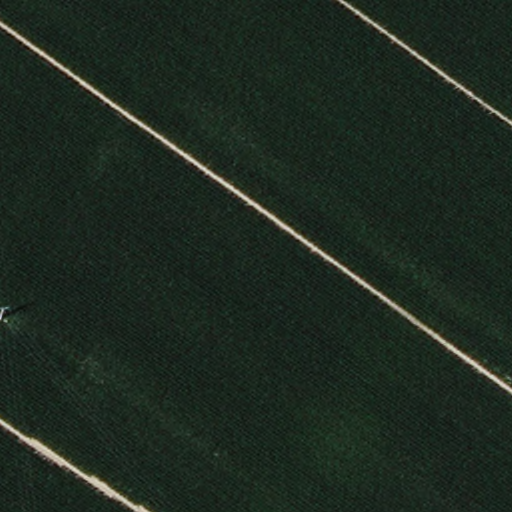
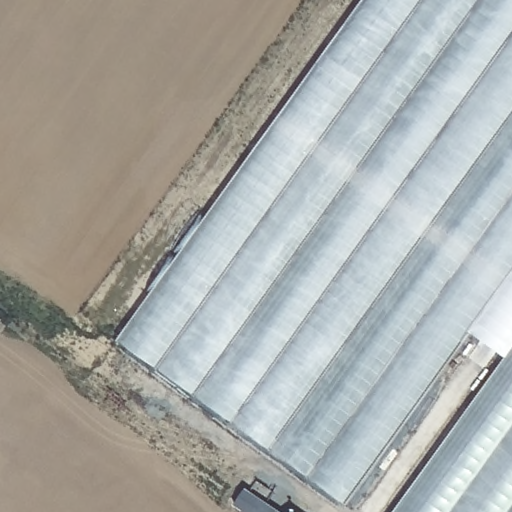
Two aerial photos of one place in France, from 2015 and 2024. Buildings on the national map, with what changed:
new [(508,357),(472,330),(346,505),(119,339),(363,0),(512,0),(512,512),(395,512),(508,357)]
new [(281,512),(243,512),(235,506),(247,489),(281,512)]
new [(295,510),(297,512),(293,512),(295,510)]

